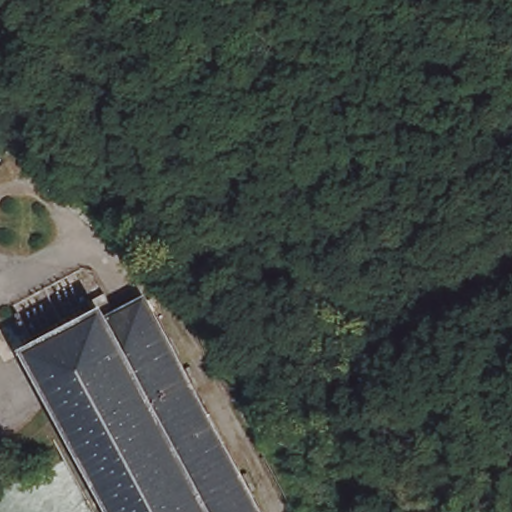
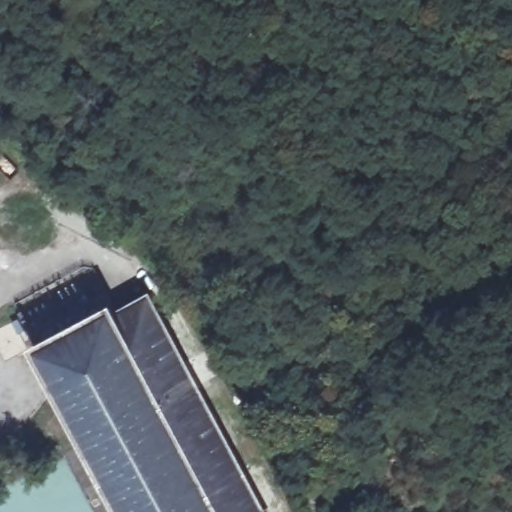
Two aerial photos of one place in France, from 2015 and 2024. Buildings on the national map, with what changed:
unchanged [(127,308),(238,512),(113,512),(30,360),(127,308)]

